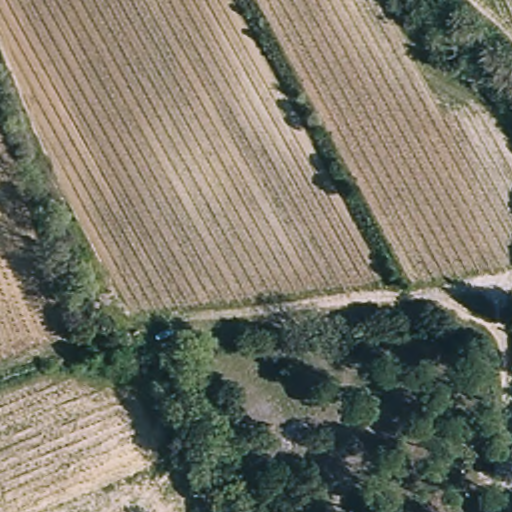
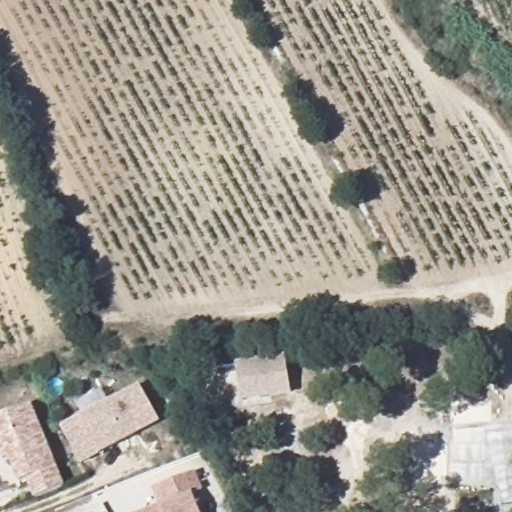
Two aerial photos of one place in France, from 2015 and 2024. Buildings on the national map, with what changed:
new [(292,395),(242,403),(235,363),(285,354),(292,395)]
new [(139,388),(160,425),(83,470),(62,435),(139,388)]
new [(57,468),(65,486),(35,500),(26,480),(19,483),(8,455),(0,460),(0,416),(30,403),(57,468)]
new [(199,478),(205,496),(196,500),(200,512),(164,512),(157,493),(199,478)]

